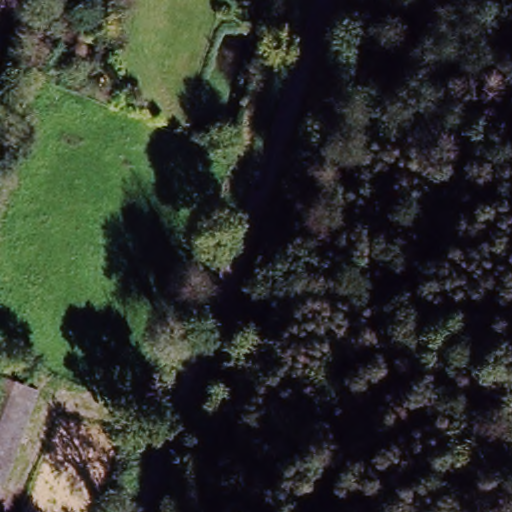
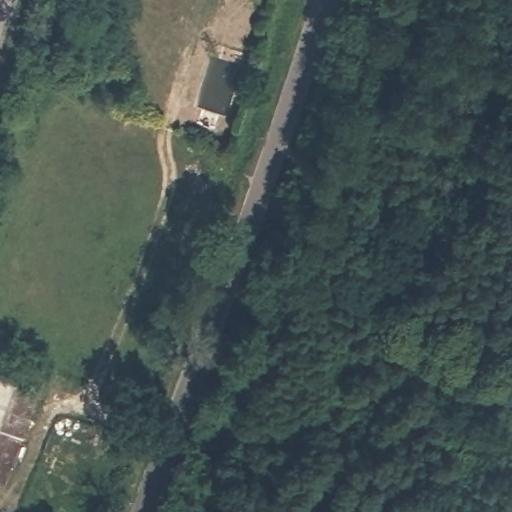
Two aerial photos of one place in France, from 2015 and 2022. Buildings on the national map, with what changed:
unchanged [(35,389),(14,486),(0,482),(0,382),(35,389)]

